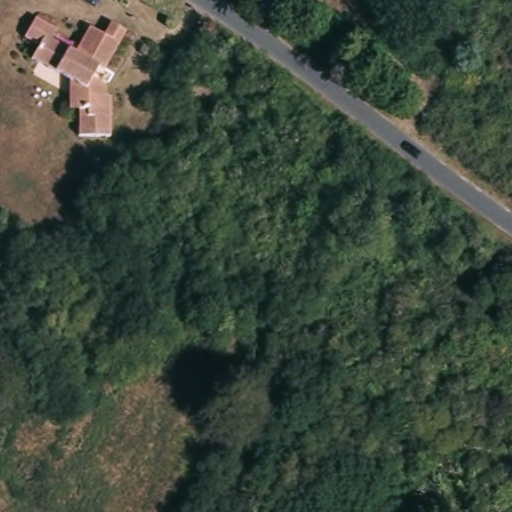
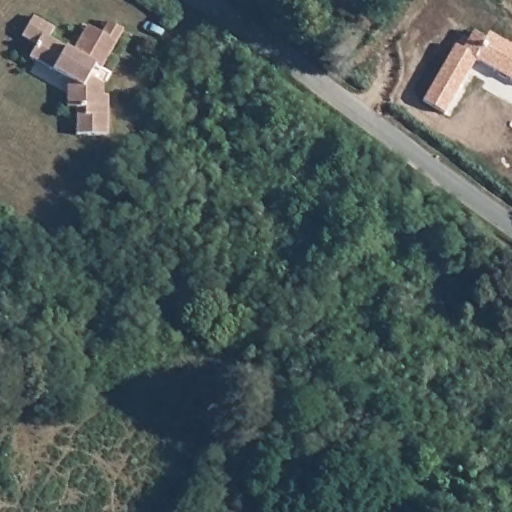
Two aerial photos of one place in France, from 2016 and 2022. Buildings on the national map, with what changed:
unchanged [(67,75),(28,52),(35,39),(22,31),(33,12),(53,23),(48,34),(72,47),(86,22),(101,30),(107,20),(121,27),(99,67),(93,64),(89,74),(97,79),(100,81),(99,99),(104,99),(96,137),(67,131),(71,105),(63,104),(67,75)]
new [(465,51),(476,33),(488,41),(491,35),(512,47),(512,81),(477,61),(446,115),(422,101),(454,46),(465,51)]

